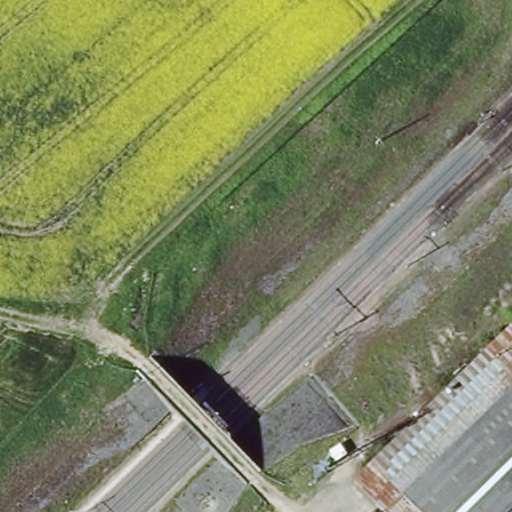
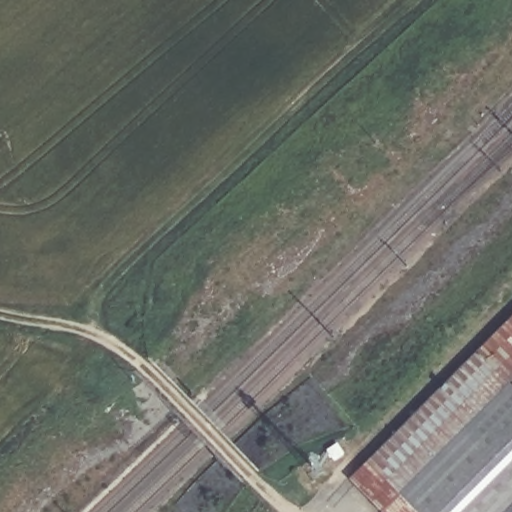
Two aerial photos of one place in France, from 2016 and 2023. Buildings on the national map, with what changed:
unchanged [(353,475),(447,389),(512,327),(512,512),(390,512),(353,475)]

